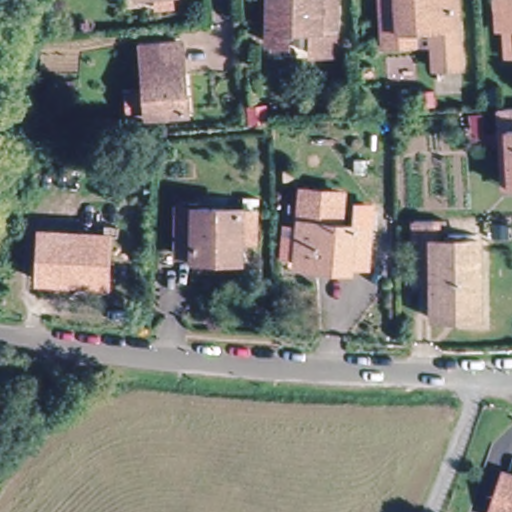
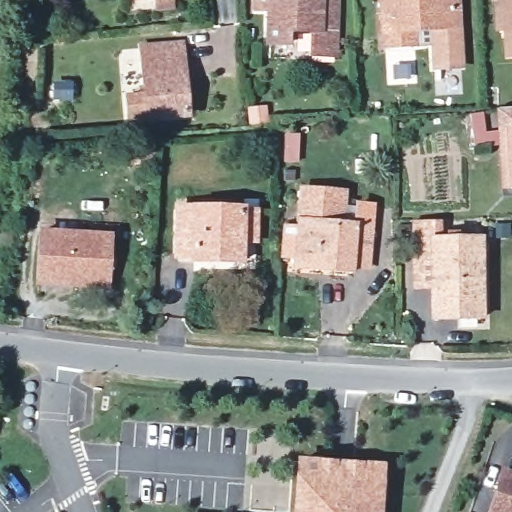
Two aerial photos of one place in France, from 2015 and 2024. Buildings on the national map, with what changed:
unchanged [(331,55),(305,55),(306,31),(285,31),(285,45),(264,44),(264,0),(332,0),(331,55)]
unchanged [(451,25),(455,25),(457,66),(429,68),(427,45),(379,47),(376,0),(449,0),(451,25)]
unchanged [(507,56),(506,28),(497,28),(495,0),(512,0),(512,56),(507,56)]
unchanged [(187,114),(148,118),(142,48),(181,45),(187,114)]
unchanged [(504,190),(498,108),(505,108),(507,108),(512,108),(512,189),(504,190)]
unchanged [(311,266),(312,261),(292,259),(292,253),(277,252),(280,222),(294,223),(295,217),(298,185),(338,189),(335,220),(349,221),(350,201),(368,203),(367,223),(363,262),(347,261),(347,264),(347,269),(311,266)]
unchanged [(184,263),(184,258),(184,255),(168,255),(169,210),(232,211),(247,211),(246,241),(231,241),(231,258),(231,263),(184,263)]
unchanged [(430,320),(430,315),(430,286),(411,286),(410,259),(410,221),(430,221),(430,241),(474,240),(475,314),(475,320),(430,320)]
unchanged [(108,237),(105,286),(39,282),(41,233),(108,237)]
new [(385,463),(382,512),(292,512),(296,457),(385,463)]
unchanged [(504,472),(512,475),(512,512),(490,512),(502,478),(504,472)]

